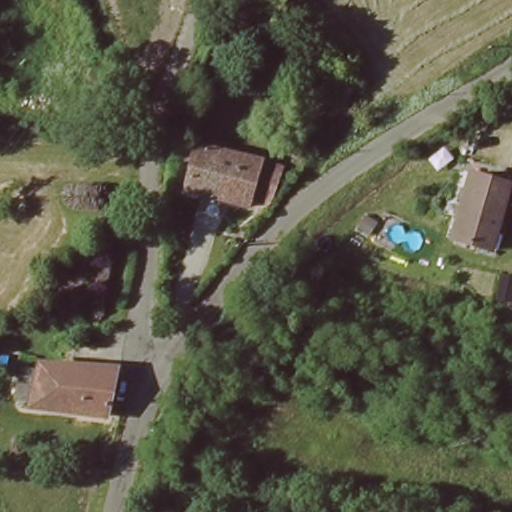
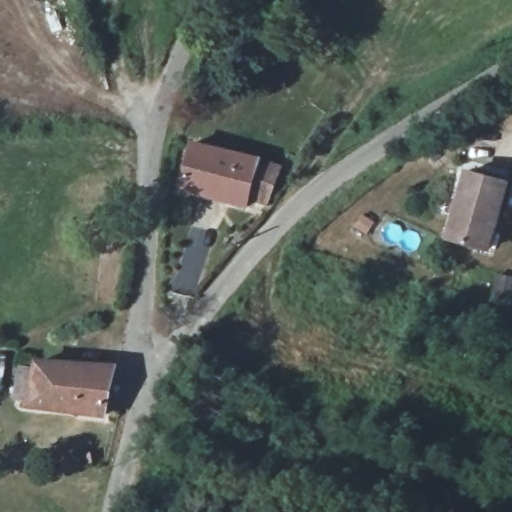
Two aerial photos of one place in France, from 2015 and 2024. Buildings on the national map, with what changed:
unchanged [(181,189),(193,144),(259,161),(247,206),(181,189)]
unchanged [(449,238),(455,216),(452,215),(465,172),(504,183),(486,248),(449,238)]
unchanged [(103,417),(29,411),(35,363),(109,369),(103,417)]

